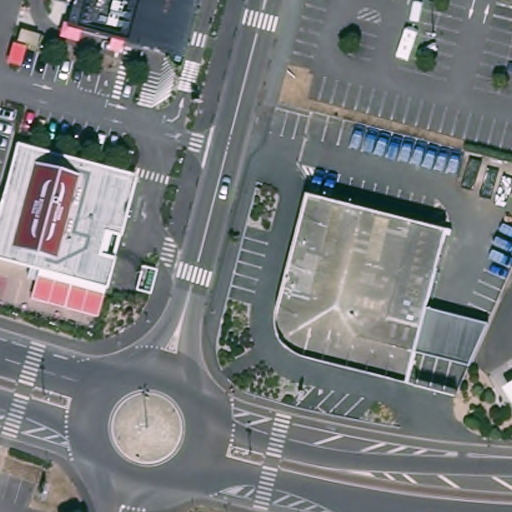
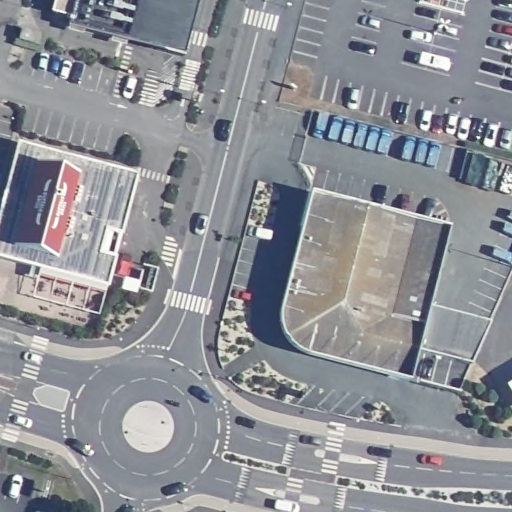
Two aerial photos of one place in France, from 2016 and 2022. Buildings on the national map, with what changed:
unchanged [(182,56),(68,26),(74,0),(197,0),(182,56)]
unchanged [(105,287),(0,258),(0,204),(16,143),(135,175),(105,287)]
unchanged [(447,228),(408,382),(387,377),(389,369),(299,344),(294,340),(290,335),(288,331),(285,325),(285,321),(285,318),(285,313),(307,230),(299,228),(308,192),(447,228)]
unchanged [(512,377),(512,404),(501,384),(512,377)]

